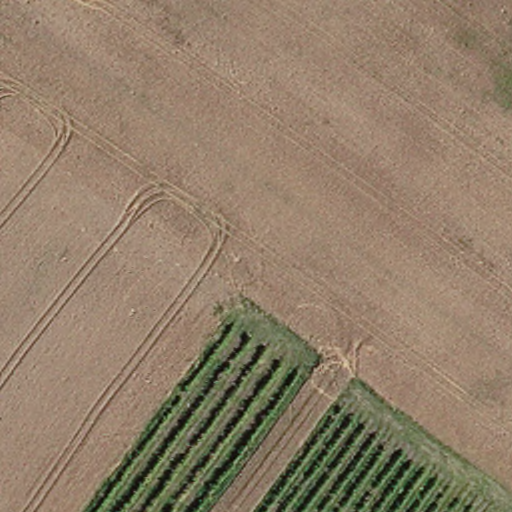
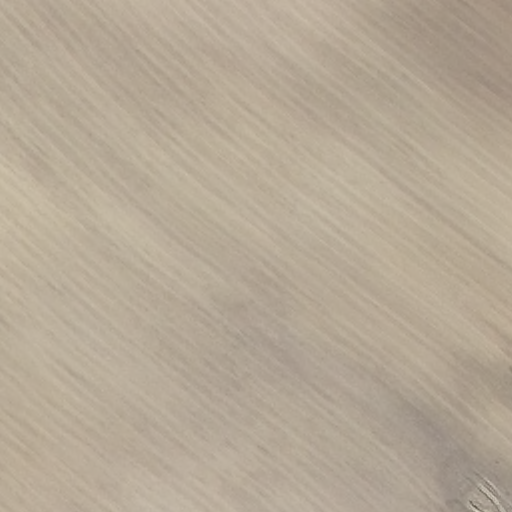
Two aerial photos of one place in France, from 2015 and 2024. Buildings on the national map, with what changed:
[]

